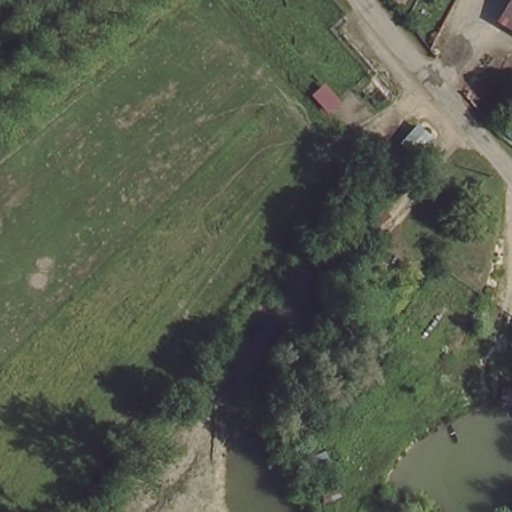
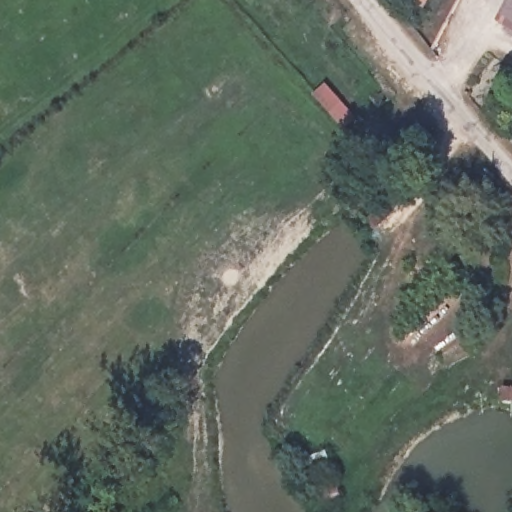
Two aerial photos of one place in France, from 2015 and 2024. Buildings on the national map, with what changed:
unchanged [(509,24),(512,18),(512,26),(509,24)]

